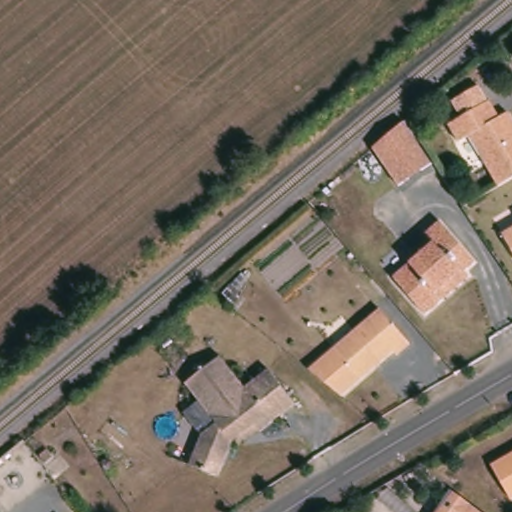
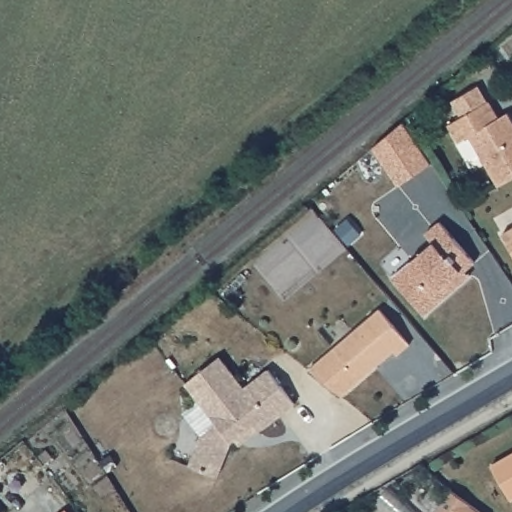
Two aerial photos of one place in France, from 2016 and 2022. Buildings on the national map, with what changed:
unchanged [(454,147),(444,130),(484,106),(495,123),(503,118),(512,132),(512,181),(494,192),(464,141),(454,147)]
unchanged [(432,163),(399,189),(374,149),(405,121),(432,163)]
unchanged [(512,225),(512,258),(498,234),(512,225)]
unchanged [(437,304),(419,319),(389,283),(429,248),(421,239),(435,227),(471,268),(461,276),(464,280),(437,304)]
unchanged [(334,353),(380,314),(410,349),(397,360),(394,356),(361,384),(334,353)]
unchanged [(361,384),(345,398),(309,372),(334,353),(361,384)]
unchanged [(230,445),(227,448),(213,482),(185,471),(197,440),(211,429),(180,390),(214,362),(240,395),(244,391),(263,375),(268,381),(291,410),(255,437),(236,452),(230,445)]
unchanged [(486,470),(512,455),(512,501),(506,505),(486,470)]
unchanged [(482,512),(435,512),(450,489),(482,512)]

